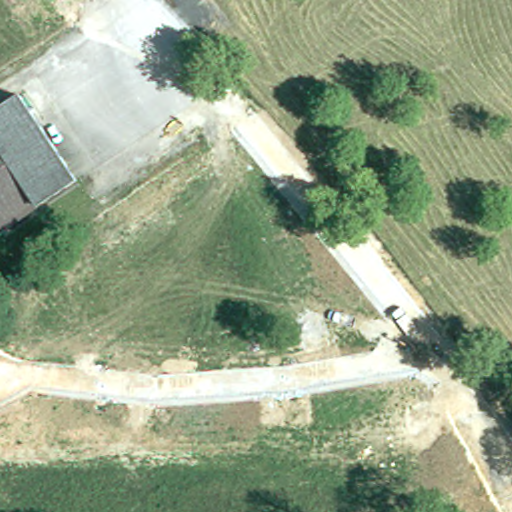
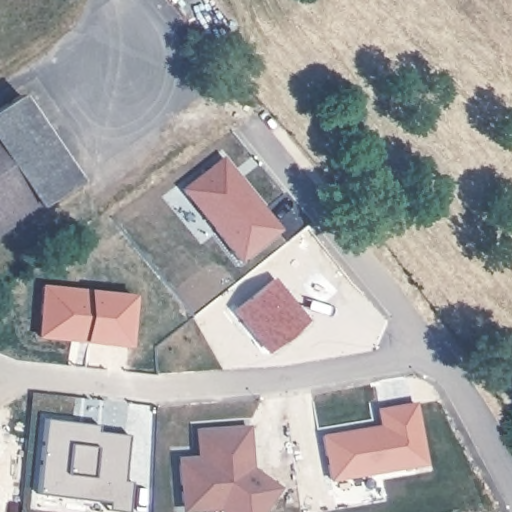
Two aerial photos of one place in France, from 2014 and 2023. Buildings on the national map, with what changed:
unchanged [(0,233),(0,111),(6,107),(23,96),(77,182),(0,233)]
new [(234,174),(229,178),(259,215),(264,211),(279,230),(239,261),(183,191),(223,160),(234,174)]
new [(286,300),(306,325),(295,332),(266,355),(234,315),(274,284),(286,300)]
new [(43,286),(58,288),(132,296),(126,346),(83,341),(84,336),(69,335),(69,340),(37,336),(41,303),(43,286)]
new [(354,435),(379,431),(377,414),(414,408),(423,468),(329,483),(321,440),(347,436),(354,435)]
new [(34,497),(44,421),(82,427),(96,429),(96,428),(98,429),(96,435),(128,439),(122,485),(129,485),(129,486),(126,512),(105,512),(106,507),(34,497)]
new [(250,468),(279,486),(260,512),(220,512),(218,510),(199,512),(180,512),(177,458),(198,456),(198,430),(248,426),(250,468)]

